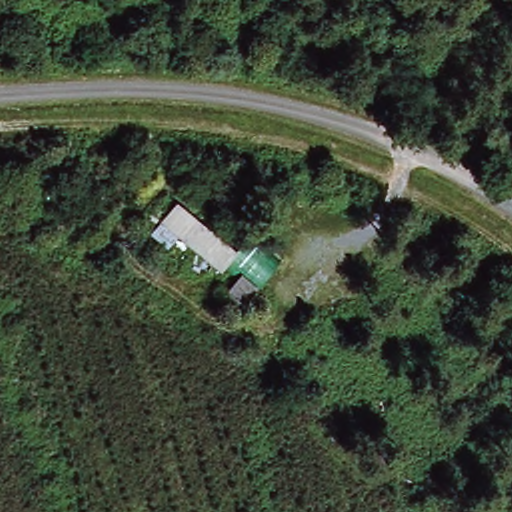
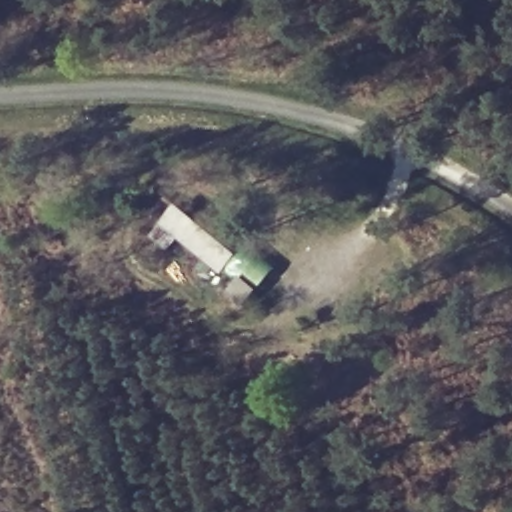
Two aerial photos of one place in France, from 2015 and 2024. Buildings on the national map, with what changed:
unchanged [(180,197),(241,252),(224,272),(181,240),(170,251),(154,236),(180,197)]

